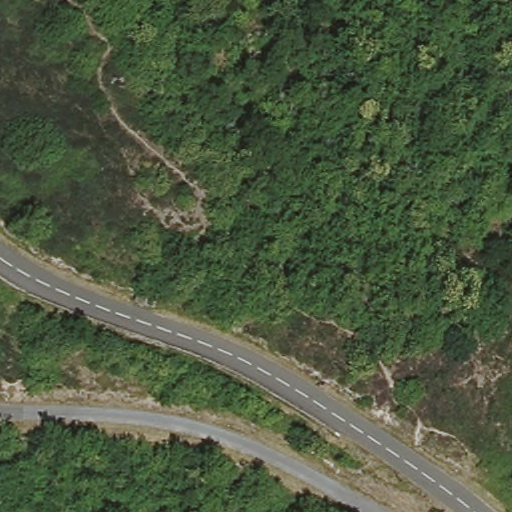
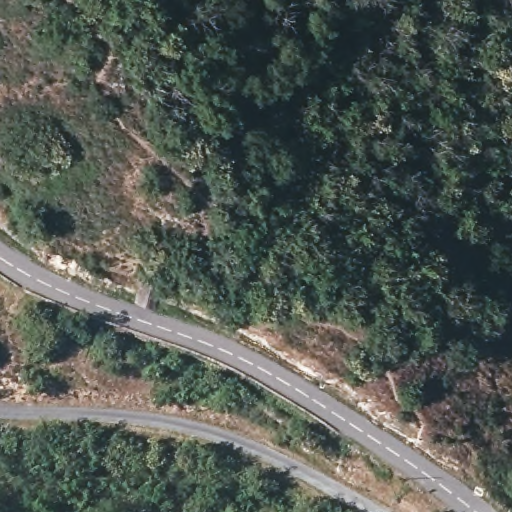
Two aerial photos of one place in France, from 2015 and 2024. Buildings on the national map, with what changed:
unchanged [(164,296),(159,310),(149,307),(140,302),(145,290),(164,296)]

